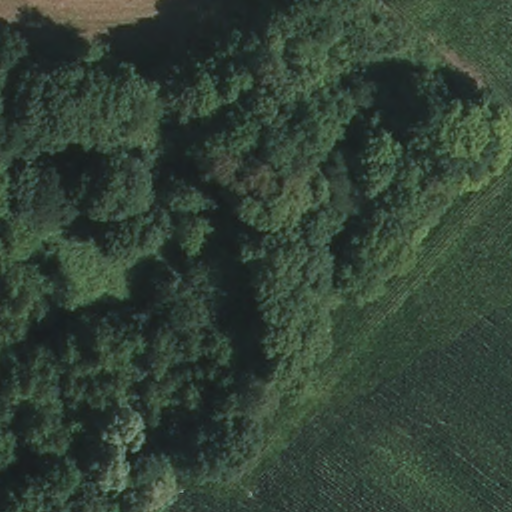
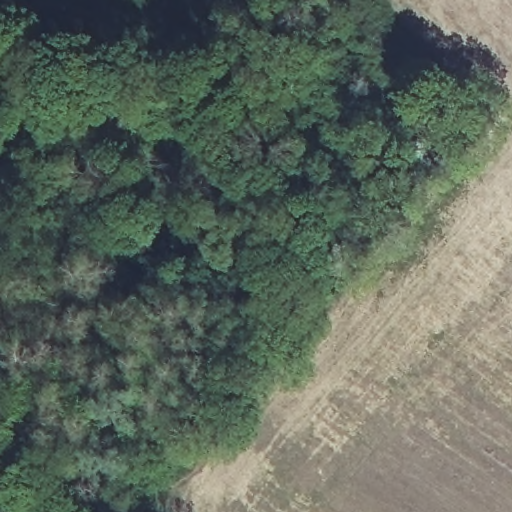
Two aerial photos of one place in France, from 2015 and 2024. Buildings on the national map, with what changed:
[]

